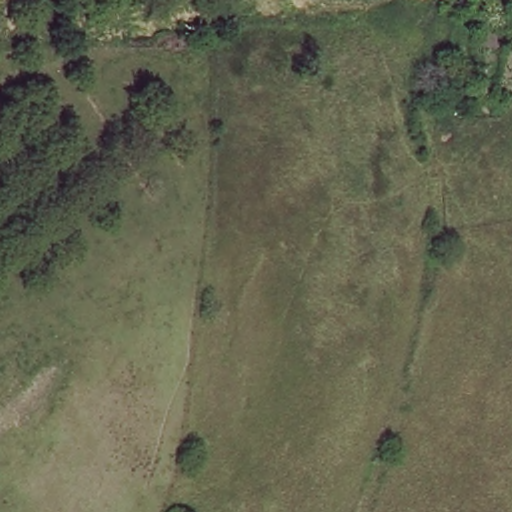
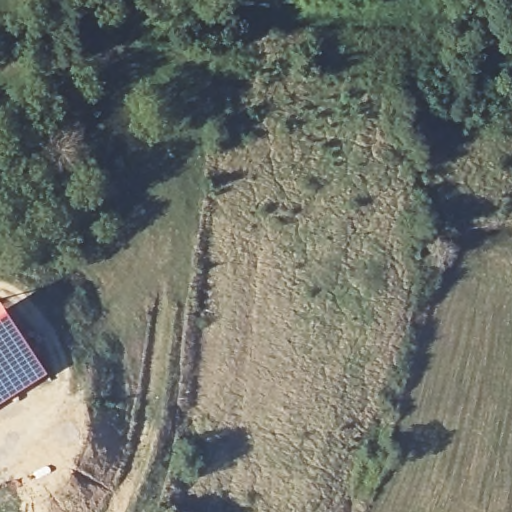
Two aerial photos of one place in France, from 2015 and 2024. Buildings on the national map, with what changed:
new [(0,303),(43,371),(0,399),(0,303)]

